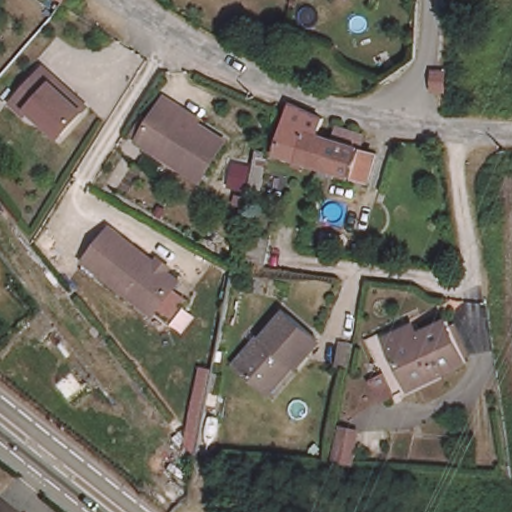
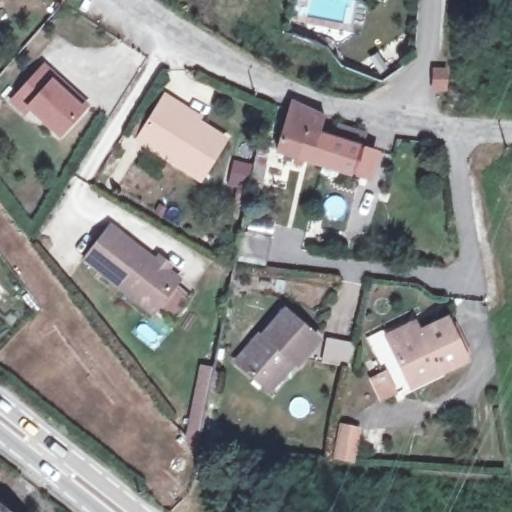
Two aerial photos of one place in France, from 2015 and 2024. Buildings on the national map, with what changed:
unchanged [(58,136),(26,108),(22,112),(10,101),(42,66),(55,77),(82,102),(78,106),(82,110),(58,136)]
unchanged [(202,120),(199,125),(224,140),(198,180),(135,139),(164,95),(180,105),(202,120)]
unchanged [(360,175),(338,169),(335,176),(323,172),(325,165),(309,161),(273,150),(291,104),(324,116),(317,136),(330,140),(334,125),(338,126),(364,134),(360,148),(376,152),(368,178),(360,175)]
unchanged [(264,165),(263,169),(260,186),(254,185),(256,176),(258,166),(258,164),(264,165)]
unchanged [(157,252),(169,261),(165,266),(178,276),(152,310),(83,258),(109,224),(153,257),(157,252)]
unchanged [(272,236),(266,263),(241,258),(246,232),(272,236)]
unchanged [(264,385),(237,361),(263,332),(266,332),(277,320),(287,308),(320,337),(297,362),(295,360),(269,390),(264,385)]
unchanged [(386,335),(404,327),(416,322),(420,331),(448,318),(457,337),(467,358),(410,385),(386,335)]
unchanged [(357,428),(351,457),(334,455),(340,425),(357,428)]
unchanged [(0,512),(0,504),(10,512),(0,512)]

